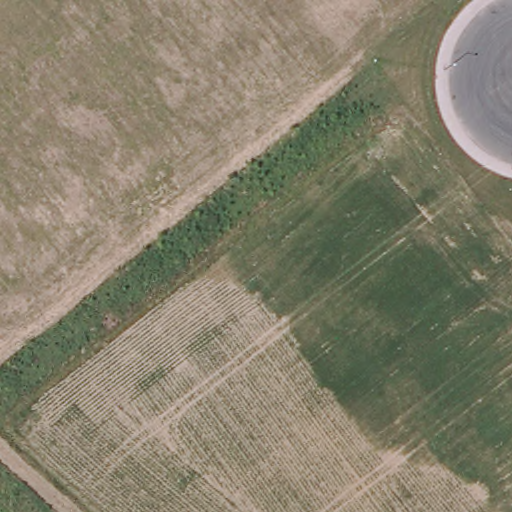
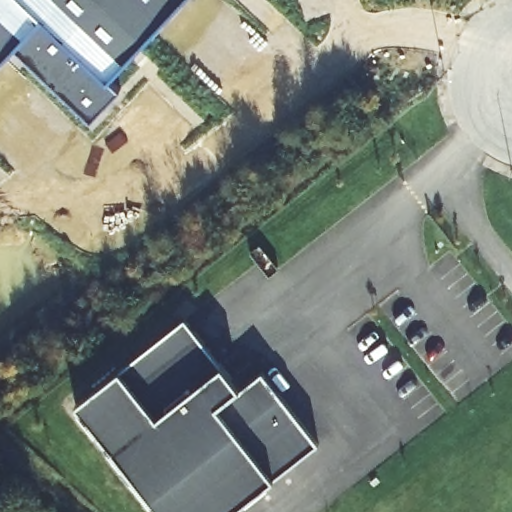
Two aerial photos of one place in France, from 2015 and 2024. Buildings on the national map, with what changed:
new [(0,61),(0,0),(183,0),(111,75),(121,86),(94,115),(18,42),(0,61)]
new [(185,318),(240,389),(262,372),(319,444),(232,512),(160,512),(75,404),(185,318)]

